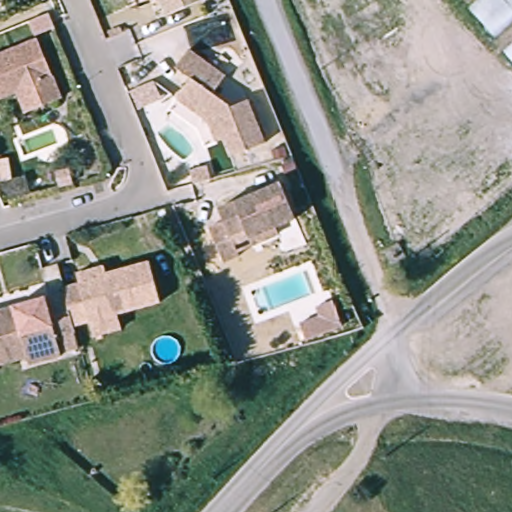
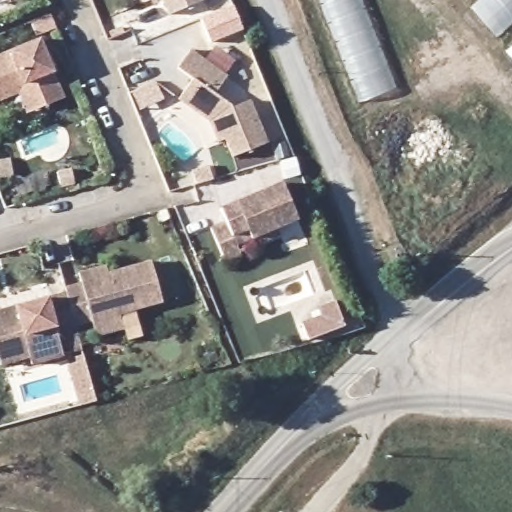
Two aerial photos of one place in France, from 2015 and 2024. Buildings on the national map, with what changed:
unchanged [(172,18),(164,0),(202,0),(204,4),(172,18)]
new [(358,104),(317,0),(361,0),(397,89),(358,104)]
unchanged [(512,0),(512,64),(460,0),(512,0)]
unchanged [(0,104),(0,55),(43,37),(68,99),(46,106),(32,112),(23,94),(0,104)]
unchanged [(235,154),(233,149),(227,134),(218,137),(213,119),(181,98),(193,81),(180,70),(192,54),(230,78),(221,89),(235,98),(236,104),(251,99),(268,136),(269,139),(235,154)]
unchanged [(255,243),(251,235),(235,242),(241,254),(226,260),(211,225),(226,219),(221,205),(283,181),(296,217),(276,225),(279,233),(255,243)]
unchanged [(397,249),(390,234),(396,231),(403,228),(410,242),(402,245),(397,249)]
unchanged [(99,336),(94,320),(76,325),(68,294),(66,288),(84,284),(81,275),(106,268),(110,274),(153,263),(163,300),(121,312),(125,328),(99,336)]
unchanged [(0,313),(68,294),(76,325),(78,334),(58,338),(65,359),(36,365),(34,359),(3,367),(0,357),(0,313)]
new [(319,315),(315,303),(334,297),(343,324),(306,337),(301,321),(319,315)]

